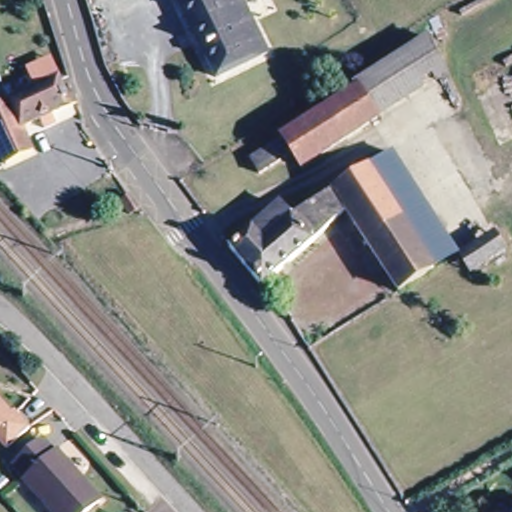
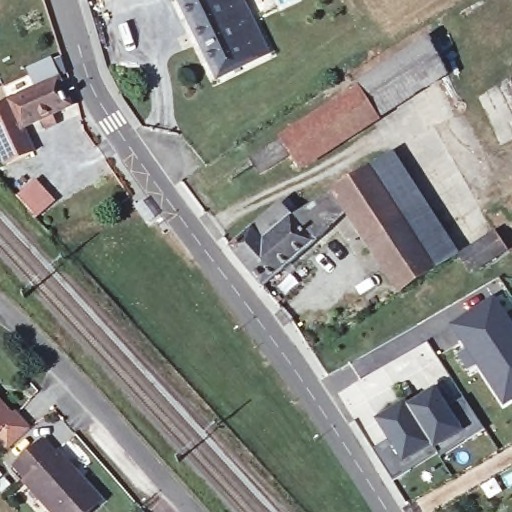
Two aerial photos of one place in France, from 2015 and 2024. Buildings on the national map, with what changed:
unchanged [(263,48),(212,73),(177,0),(240,0),(263,48)]
unchanged [(355,80),(427,34),(447,69),(377,115),(375,112),(358,84),(355,80)]
unchanged [(24,127),(35,152),(9,164),(0,145),(0,105),(60,77),(68,97),(75,94),(77,102),(24,127)]
unchanged [(303,163),(292,147),(261,167),(252,153),(358,84),(375,112),(377,115),(303,163)]
unchanged [(457,248),(433,263),(417,237),(370,164),(393,148),(457,248)]
unchanged [(435,264),(400,286),(346,204),(313,238),(262,281),(230,243),(253,224),(280,198),(292,212),(293,213),(335,186),(370,164),(417,237),(433,263),(435,264)]
unchanged [(130,196),(139,208),(131,214),(122,202),(130,196)]
unchanged [(472,267),(461,250),(495,228),(506,244),(472,267)]
new [(494,299),(512,327),(512,398),(505,402),(480,364),(465,341),(455,325),(494,299)]
new [(438,453),(412,469),(393,481),(377,456),(373,449),(390,438),(379,420),(406,403),(408,407),(436,390),(447,408),(465,397),(468,403),(485,429),(467,441),(440,458),(438,453)]
unchanged [(13,417),(16,414),(30,429),(8,449),(0,440),(0,402),(13,417)]
unchanged [(78,512),(51,512),(20,477),(23,475),(10,461),(40,435),(51,449),(54,447),(96,496),(78,512)]

